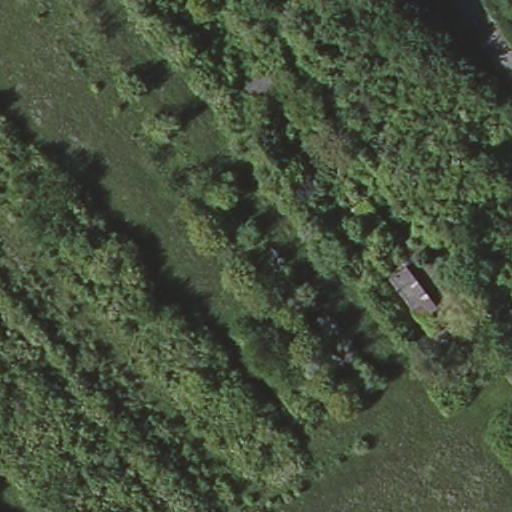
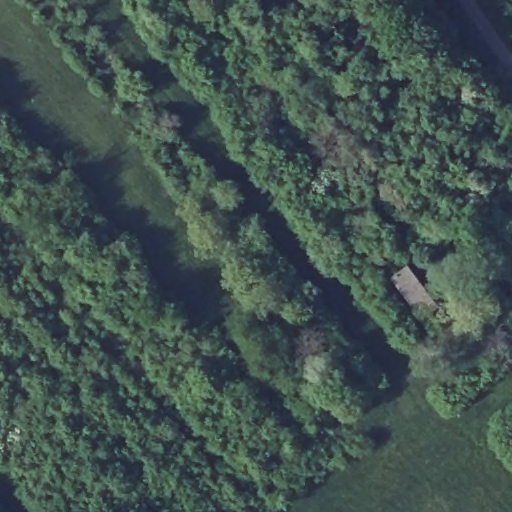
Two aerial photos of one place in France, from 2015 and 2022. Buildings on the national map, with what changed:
unchanged [(390,230),(370,243),(342,209),(363,194),(390,230)]
unchanged [(378,279),(404,264),(433,309),(413,322),(378,279)]

